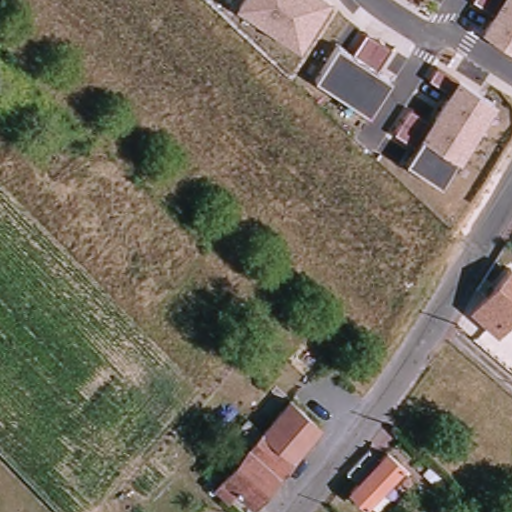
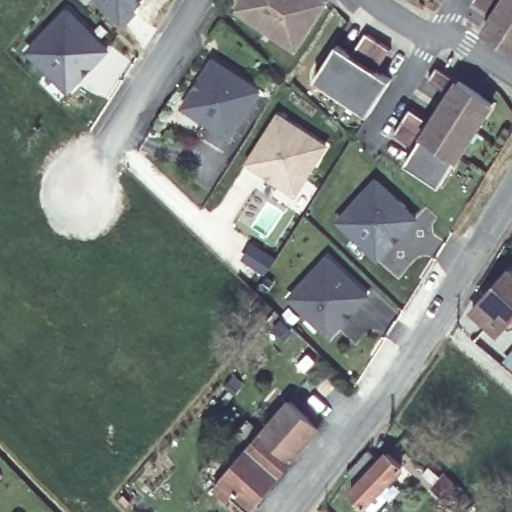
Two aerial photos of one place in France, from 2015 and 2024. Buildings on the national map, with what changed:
new [(134,6),(138,10),(126,22),(102,0),(139,0),(134,6)]
unchanged [(299,49),(235,8),(240,0),(330,0),(299,49)]
unchanged [(493,13),(473,2),(473,0),(512,0),(512,49),(481,31),(493,13)]
new [(25,51),(68,7),(110,49),(69,92),(25,51)]
unchanged [(391,48),(377,71),(391,80),(370,115),(314,81),(337,45),(352,54),(367,33),(391,48)]
new [(182,106),(214,55),(263,88),(232,137),(182,106)]
unchanged [(443,186),(405,163),(417,147),(395,133),(411,107),(433,119),(450,92),(429,79),(436,67),(459,78),(498,103),(443,186)]
new [(279,115),(326,145),(295,193),(248,162),(279,115)]
new [(335,221),(376,176),(420,218),(379,261),(335,221)]
new [(288,298),(329,254),(372,295),(330,337),(288,298)]
unchanged [(511,265),(512,266),(512,321),(499,335),(471,311),(511,265)]
new [(512,352),(512,366),(505,360),(512,352)]
unchanged [(296,401),(328,427),(262,504),(232,478),(296,401)]
unchanged [(383,450),(393,460),(400,452),(414,467),(378,504),(368,496),(364,500),(360,495),(371,483),(361,472),(383,450)]

